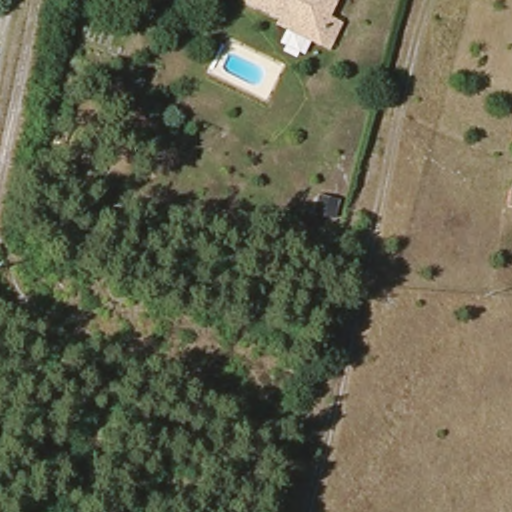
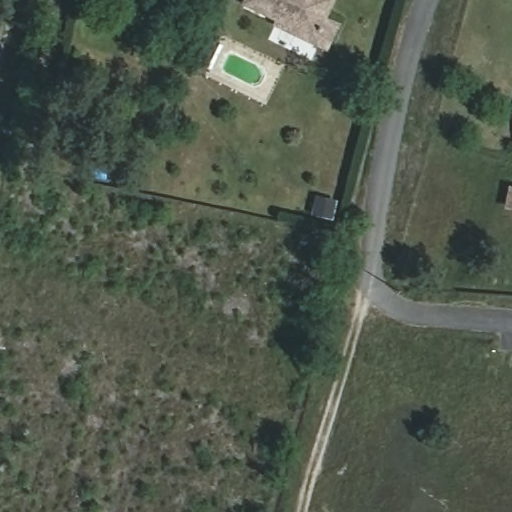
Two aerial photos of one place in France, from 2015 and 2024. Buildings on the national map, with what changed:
unchanged [(275,29),(278,21),(256,9),(244,1),(245,0),(326,0),(335,6),(327,20),(337,25),(321,53),(275,29)]

